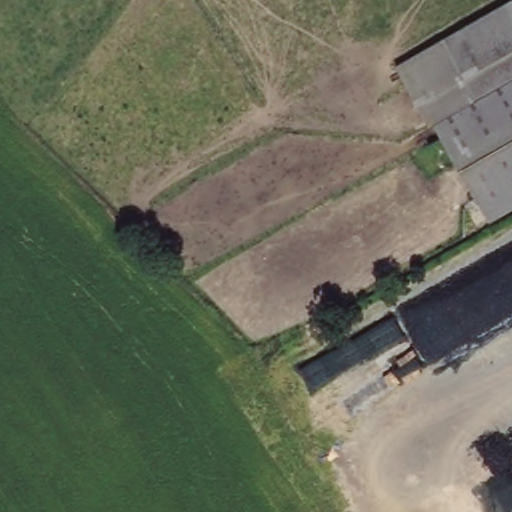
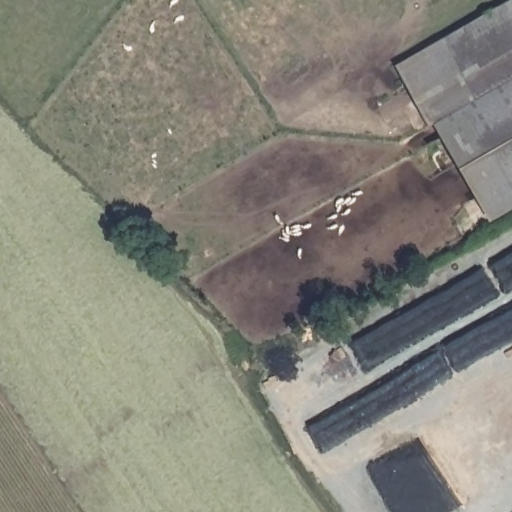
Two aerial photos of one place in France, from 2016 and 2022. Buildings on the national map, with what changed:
unchanged [(488,228),(432,126),(427,131),(392,68),(512,0),(512,213),(488,228)]

